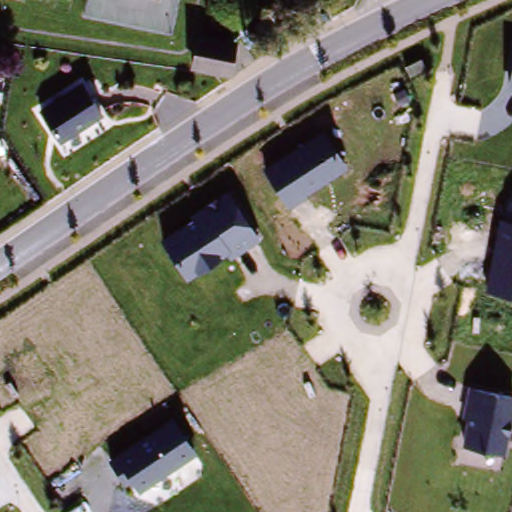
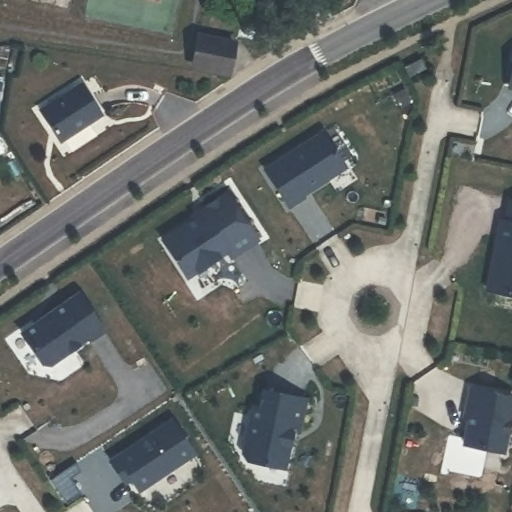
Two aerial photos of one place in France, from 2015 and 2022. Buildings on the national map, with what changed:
unchanged [(336,9),(342,21),(330,27),(325,15),(336,9)]
unchanged [(197,40),(235,46),(230,74),(194,70),(197,40)]
unchanged [(508,88),(512,71),(512,89),(508,88)]
unchanged [(84,86),(105,118),(62,145),(42,113),(84,86)]
unchanged [(322,128),(347,166),(287,206),(267,166),(322,128)]
unchanged [(229,194),(260,239),(232,258),(229,254),(187,280),(161,238),(229,194)]
unchanged [(505,201),(512,203),(512,295),(486,287),(505,201)]
new [(70,299),(72,302),(84,293),(109,327),(95,337),(93,335),(55,363),(47,361),(26,331),(70,299)]
unchanged [(468,419),(463,418),(469,387),(512,395),(512,411),(503,455),(462,443),(468,419)]
new [(253,413),(260,415),(265,393),(306,402),(300,432),(294,430),(284,471),(247,463),(243,457),(253,413)]
unchanged [(192,454),(137,489),(127,472),(120,476),(110,461),(172,420),(192,454)]
new [(76,460),(82,468),(71,475),(82,491),(67,500),(51,476),(76,460)]

